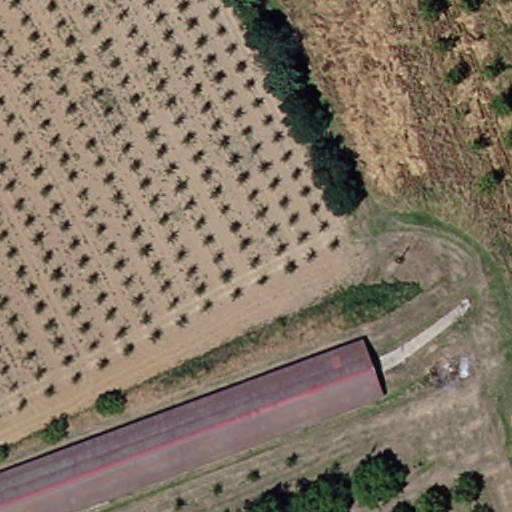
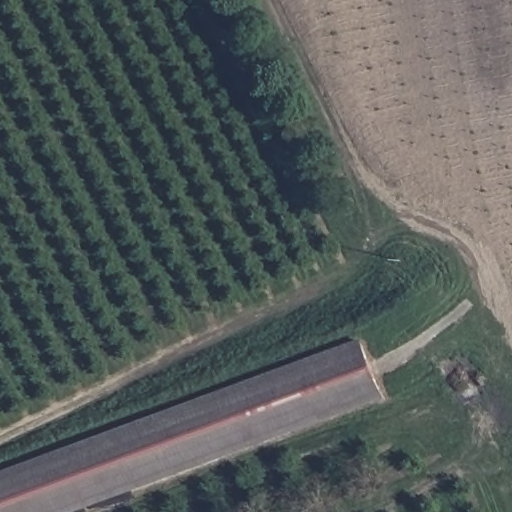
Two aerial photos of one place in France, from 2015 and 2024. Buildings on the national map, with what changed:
unchanged [(389,391),(88,512),(0,512),(0,482),(366,335),(389,391)]

